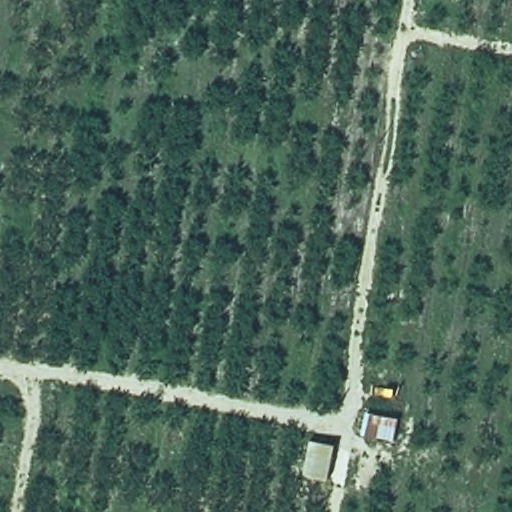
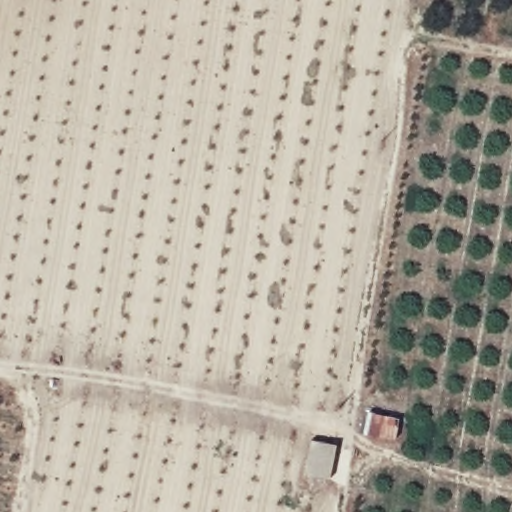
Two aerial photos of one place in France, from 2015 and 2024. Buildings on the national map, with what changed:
unchanged [(367,405),(399,412),(394,438),(362,432),(367,405)]
unchanged [(304,470),(309,433),(334,440),(329,476),(304,470)]

